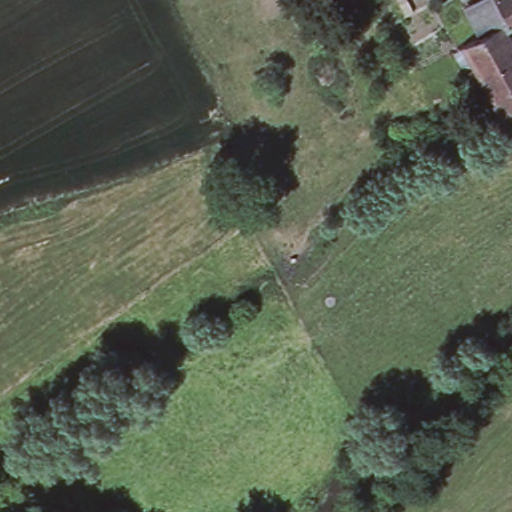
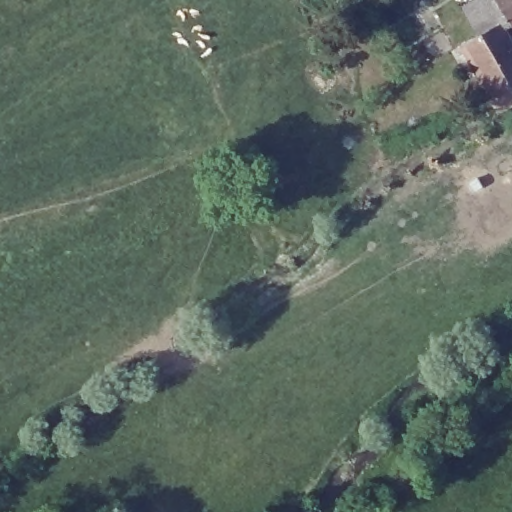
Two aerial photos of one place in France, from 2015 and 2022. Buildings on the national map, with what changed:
unchanged [(477,32),(465,12),(485,0),(496,0),(512,25),(507,28),(512,37),(512,105),(500,111),(460,43),(477,32)]
unchanged [(512,25),(496,0),(512,0),(512,25)]

